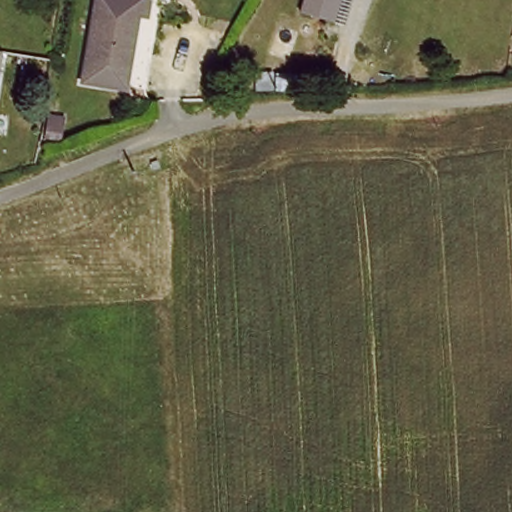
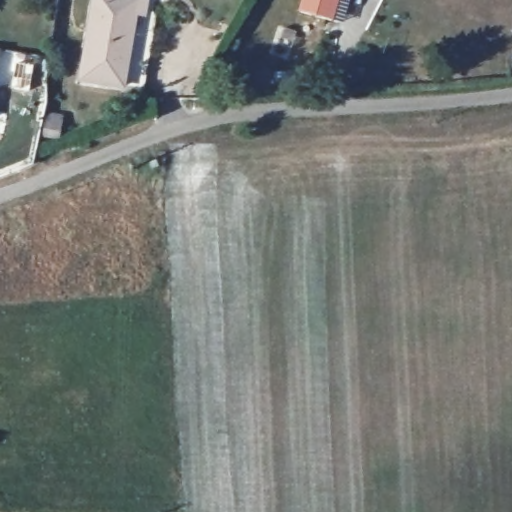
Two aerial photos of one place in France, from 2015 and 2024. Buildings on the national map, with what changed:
unchanged [(337,0),(333,12),(301,1),(301,0),(337,0)]
unchanged [(107,7),(148,16),(131,87),(90,78),(107,7)]

